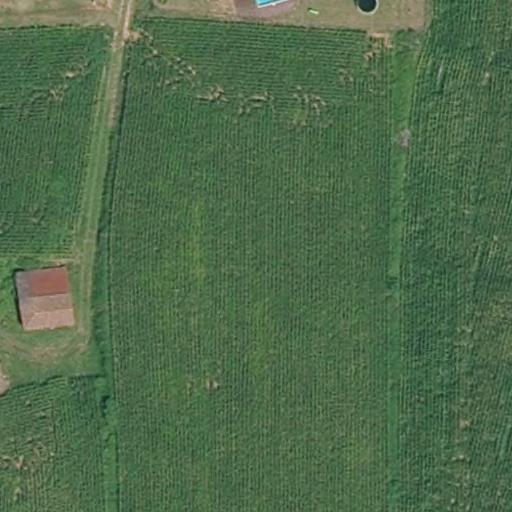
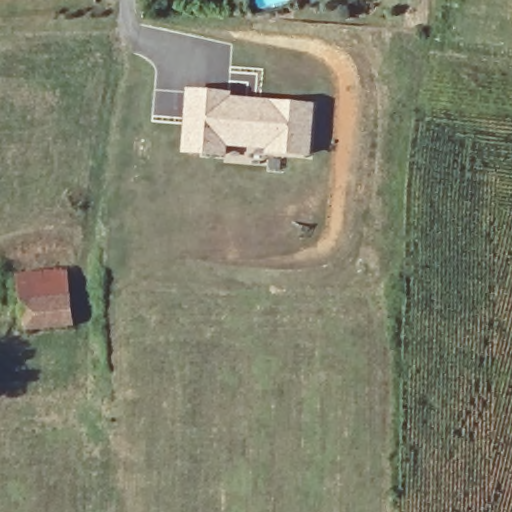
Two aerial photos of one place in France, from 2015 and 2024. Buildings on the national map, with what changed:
new [(232,92),(232,97),(314,103),(311,158),(266,156),(266,150),(227,147),(226,157),(182,155),(187,89),(232,92)]
unchanged [(68,295),(21,301),(18,276),(65,270),(68,295)]
unchanged [(68,295),(72,322),(25,328),(21,301),(68,295)]
demolished [(14,384),(0,385),(0,358),(12,357),(14,384)]

